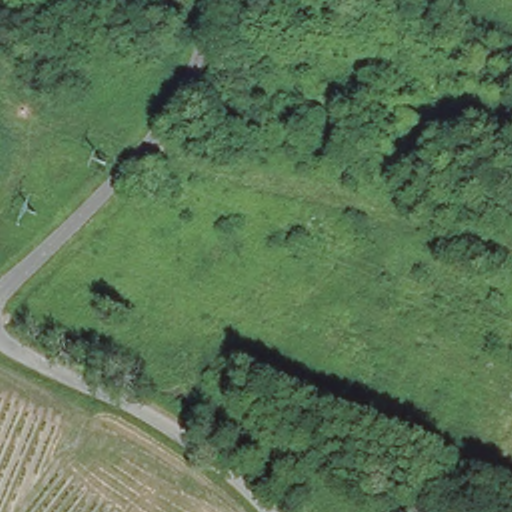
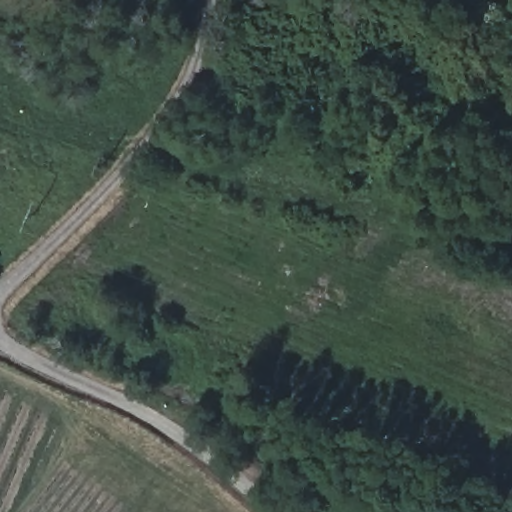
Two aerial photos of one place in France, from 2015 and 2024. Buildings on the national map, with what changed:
unchanged [(252,364),(229,391),(213,379),(235,351),(252,364)]

